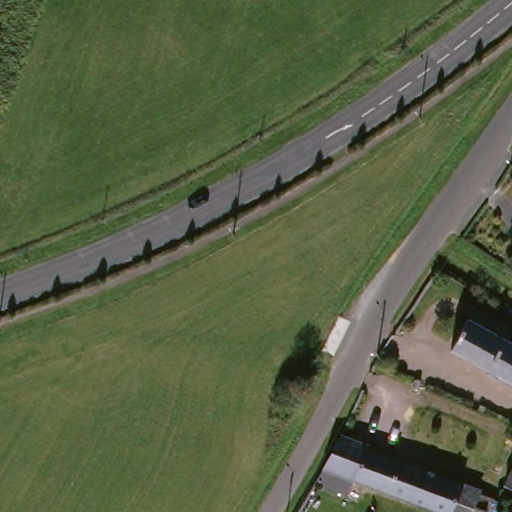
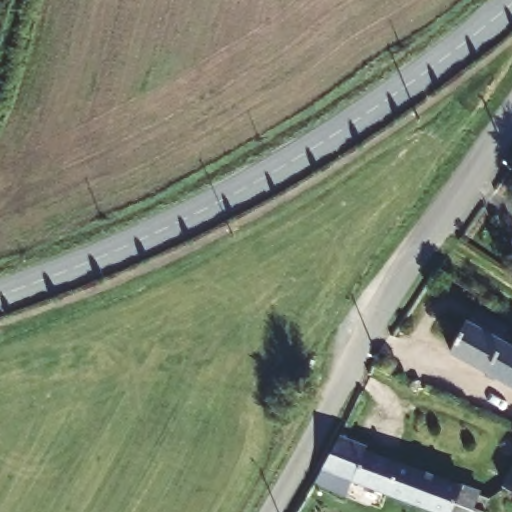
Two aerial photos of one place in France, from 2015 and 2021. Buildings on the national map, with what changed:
unchanged [(470,318),(472,319),(479,307),(510,326),(504,336),(512,340),(512,383),(455,350),(470,318)]
unchanged [(322,468),(341,435),(367,443),(366,446),(478,491),(472,506),(482,510),(481,512),(429,512),(403,502),(398,500),(384,494),(353,481),(346,497),(314,481),(322,468)]
unchanged [(507,487),(512,478),(512,489),(508,488),(507,487)]

